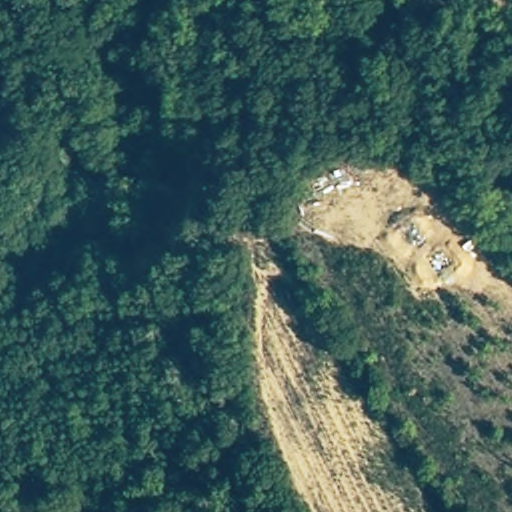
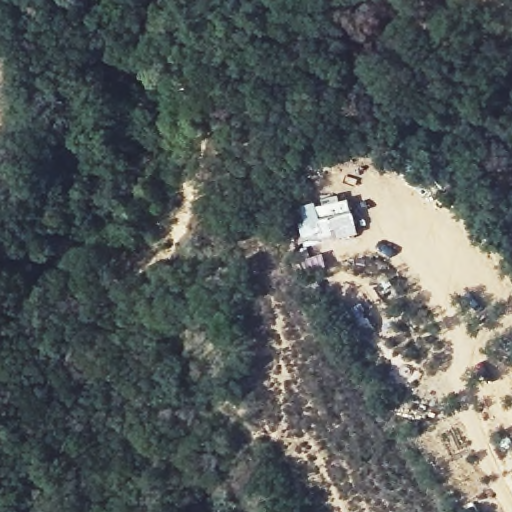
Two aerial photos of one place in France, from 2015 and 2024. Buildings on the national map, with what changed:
new [(303,205),(317,201),(318,206),(351,198),(360,233),(309,246),(303,222),(309,220),(303,205)]

